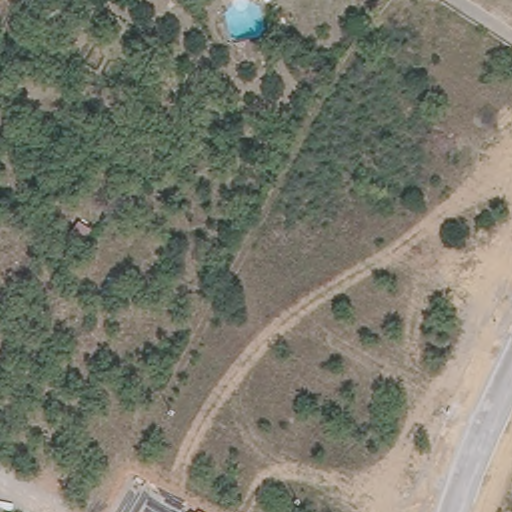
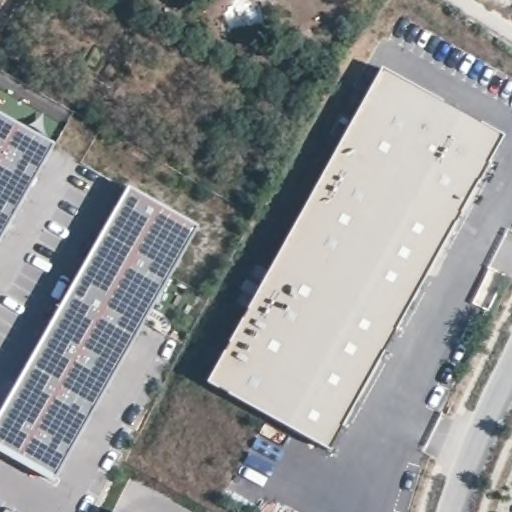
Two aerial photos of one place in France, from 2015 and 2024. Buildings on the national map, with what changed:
unchanged [(264,36),(268,55),(238,61),(234,42),(264,36)]
new [(381,68),(504,136),(329,451),(208,382),(381,68)]
new [(0,241),(0,115),(55,145),(0,241)]
new [(199,227),(53,484),(0,454),(0,415),(129,187),(199,227)]

